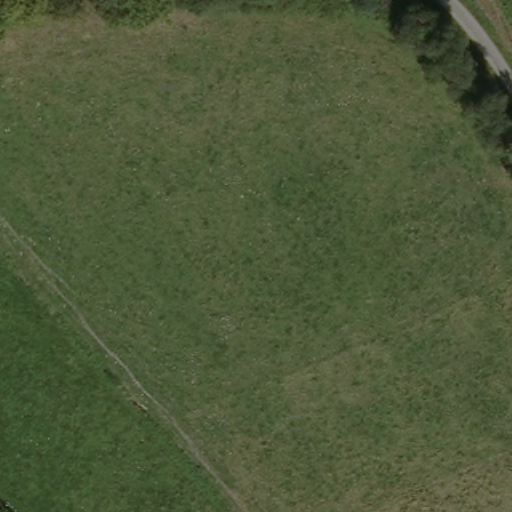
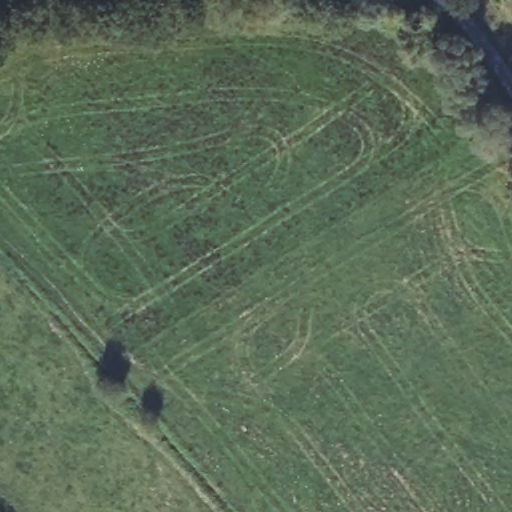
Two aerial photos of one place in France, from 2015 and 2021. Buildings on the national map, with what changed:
[]

